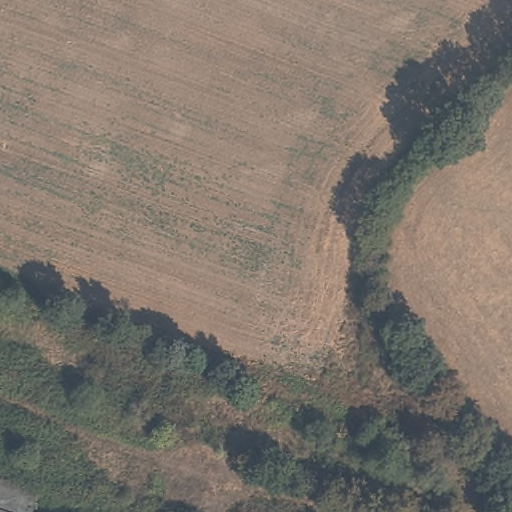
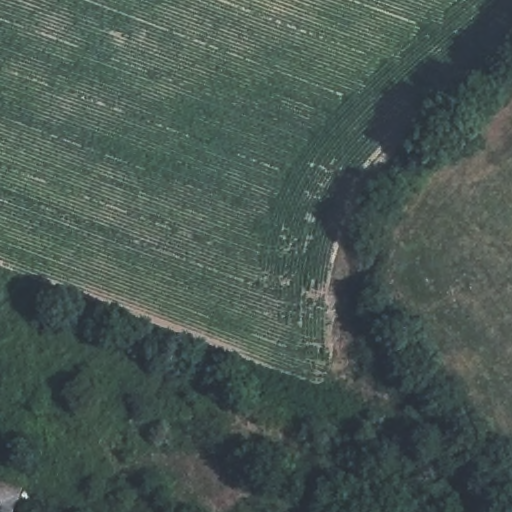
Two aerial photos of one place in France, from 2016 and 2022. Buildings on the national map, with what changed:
unchanged [(0,512),(0,481),(92,512),(0,512)]

